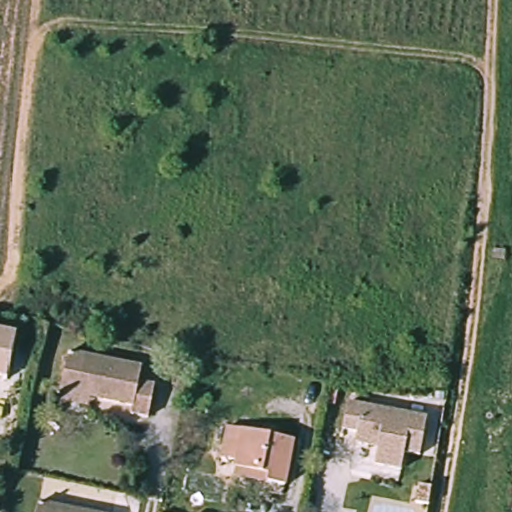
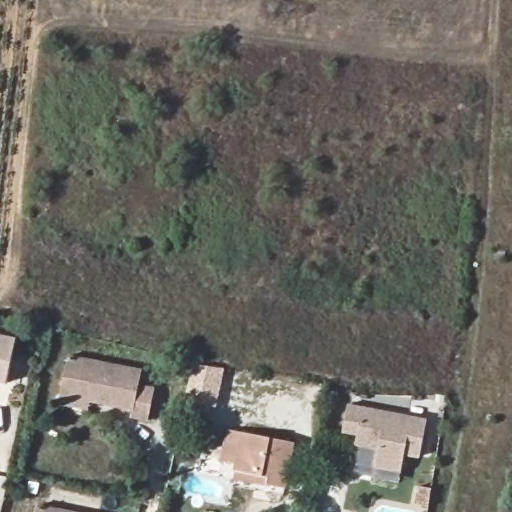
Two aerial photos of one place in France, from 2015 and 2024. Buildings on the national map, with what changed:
unchanged [(8,384),(0,382),(0,335),(19,339),(8,384)]
unchanged [(138,379),(136,396),(151,400),(145,430),(126,427),(128,419),(86,409),(84,416),(58,410),(68,364),(138,379)]
new [(225,369),(216,408),(211,406),(209,412),(183,406),(193,364),(225,369)]
unchanged [(423,415),(417,451),(402,448),(398,465),(372,460),(376,443),(351,438),(352,429),(341,427),(346,400),(423,415)]
unchanged [(293,441),(286,485),(262,482),(264,473),(231,469),(231,464),(218,461),(223,430),(293,441)]
unchanged [(60,512),(39,512),(40,507),(60,512)]

